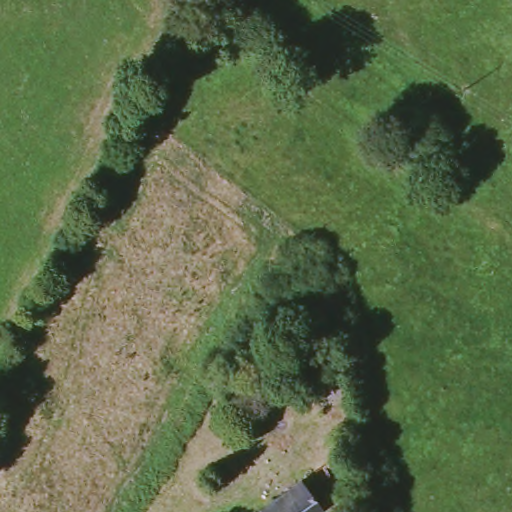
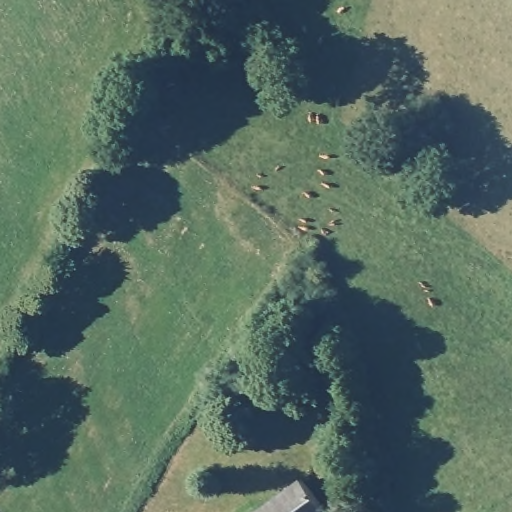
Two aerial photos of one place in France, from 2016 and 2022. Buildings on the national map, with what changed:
unchanged [(321,505),(312,512),(254,512),(299,477),(321,505)]

